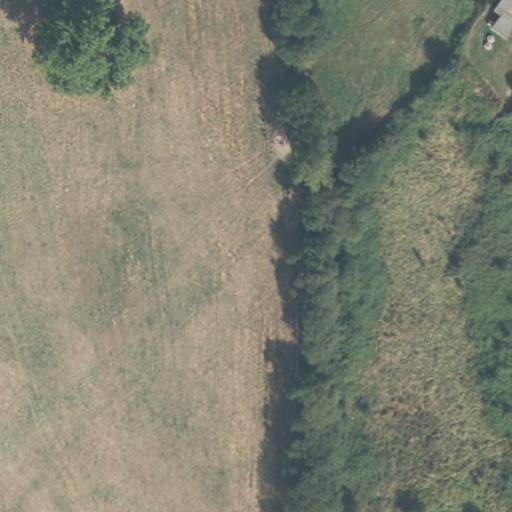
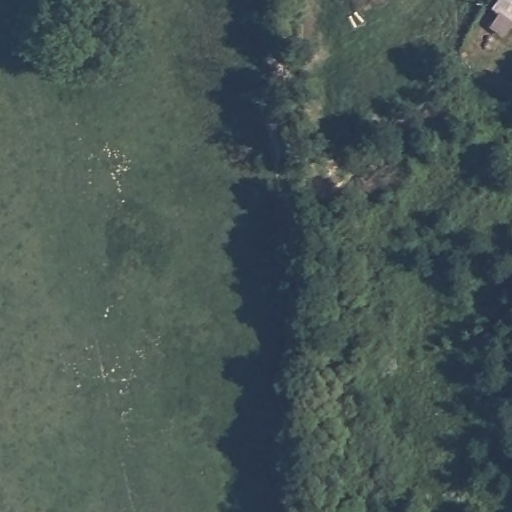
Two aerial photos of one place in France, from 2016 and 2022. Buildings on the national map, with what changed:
unchanged [(497,15),(512,24),(512,30),(502,44),(486,34),(497,15)]

